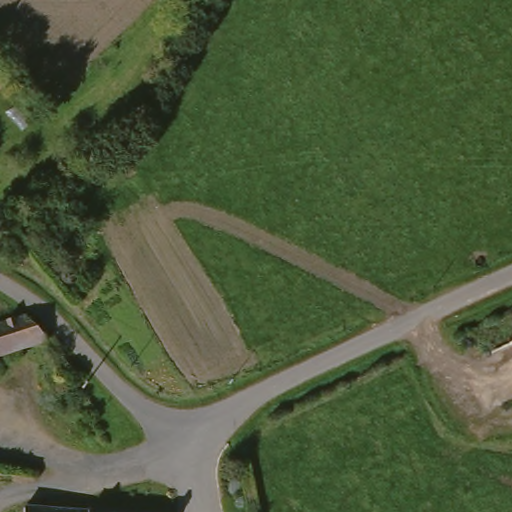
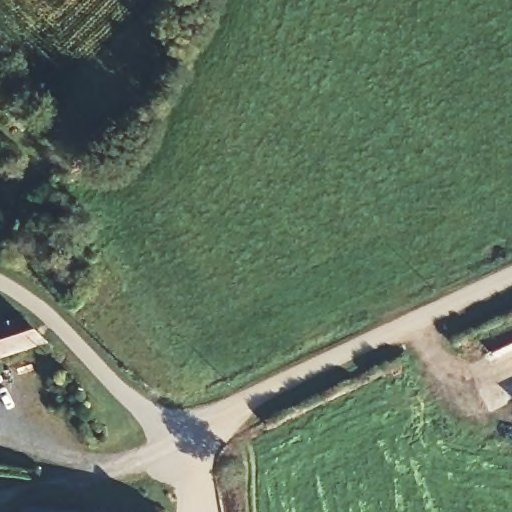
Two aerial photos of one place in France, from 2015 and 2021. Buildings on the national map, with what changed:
unchanged [(36,322),(41,342),(0,353),(0,331),(36,322)]
unchanged [(9,512),(9,510),(165,512),(9,512)]

